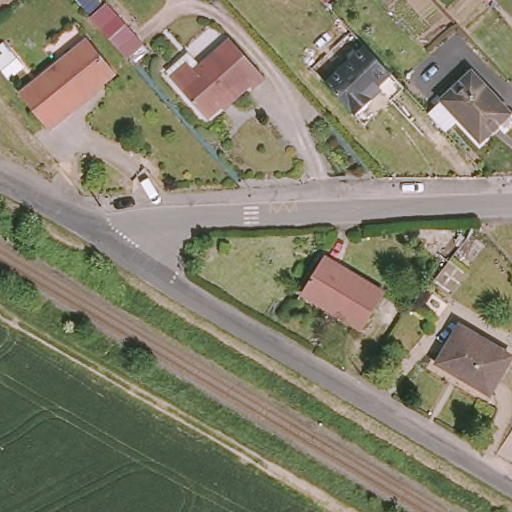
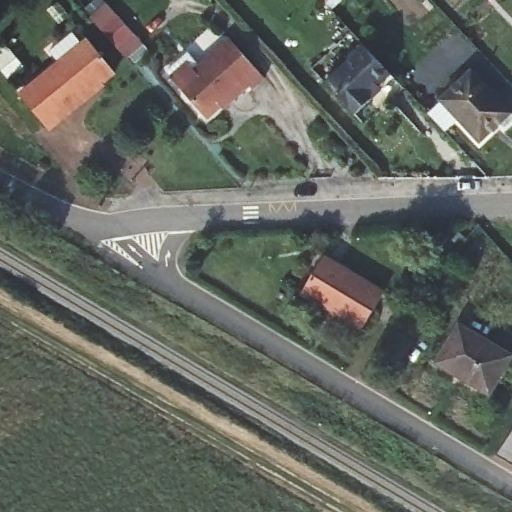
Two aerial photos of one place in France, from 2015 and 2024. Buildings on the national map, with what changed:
unchanged [(321,0),(324,0),(323,1),(321,0)]
unchanged [(89,24),(108,6),(143,44),(123,63),(89,24)]
unchanged [(73,109),(49,129),(20,93),(86,38),(114,71),(71,106),(73,109)]
unchanged [(263,76),(251,88),(246,81),(205,118),(176,85),(169,78),(175,72),(186,62),(193,69),(228,39),(263,76)]
unchanged [(371,99),(354,114),(334,93),(316,109),(309,102),(307,99),(324,83),(364,46),(391,74),(378,86),(381,90),(371,99)]
unchanged [(471,72),(509,113),(479,140),(441,99),(471,72)]
unchanged [(323,255),(384,292),(361,329),(301,292),(323,255)]
unchanged [(459,325),(509,356),(489,393),(437,362),(459,325)]

